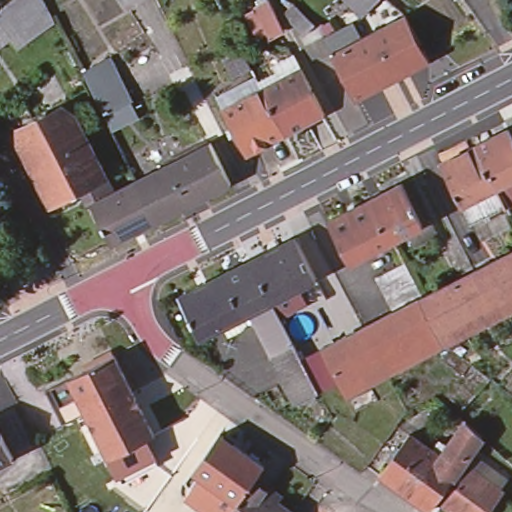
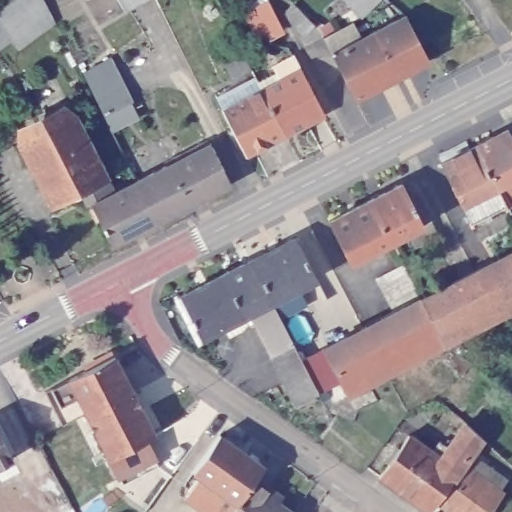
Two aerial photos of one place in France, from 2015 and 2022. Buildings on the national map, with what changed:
unchanged [(10,0),(45,0),(55,19),(17,45),(11,36),(0,44),(0,7),(10,0)]
unchanged [(127,5),(124,0),(137,0),(127,5)]
unchanged [(269,0),(270,0),(281,23),(258,36),(245,13),(269,0)]
unchanged [(365,13),(351,0),(375,0),(377,1),(365,13)]
unchanged [(293,22),(289,12),(290,11),(297,4),(319,24),(307,36),(300,28),(293,22)]
unchanged [(408,14),(432,60),(398,77),(375,31),(408,14)]
unchanged [(398,77),(357,98),(334,52),(325,36),(355,21),(364,36),(375,31),(398,77)]
unchanged [(241,50),(252,72),(235,82),(223,60),(241,50)]
unchanged [(79,73),(110,56),(132,101),(99,116),(79,73)]
unchanged [(224,113),(218,102),(257,81),(259,83),(264,93),(302,72),(325,118),(286,138),(247,158),(224,113)]
unchanged [(131,103),(139,117),(114,131),(105,117),(131,103)]
unchanged [(85,189),(52,205),(19,140),(74,112),(115,190),(92,202),(85,189)]
unchanged [(508,205),(506,205),(505,203),(471,220),(462,202),(442,161),(477,143),(510,127),(512,132),(512,210),(511,211),(508,205)]
unchanged [(232,182),(157,220),(137,179),(210,142),(232,182)]
unchanged [(115,190),(137,179),(157,220),(112,243),(92,202),(115,190)]
unchanged [(410,194),(417,190),(432,218),(424,222),(392,238),(372,197),(403,181),(410,194)]
unchanged [(372,197),(392,238),(350,259),(330,219),(372,197)]
unchanged [(295,236),(317,277),(272,300),(250,258),(295,236)]
unchanged [(512,293),(494,303),(475,267),(512,248),(512,293)]
unchanged [(295,343),(272,354),(250,311),(245,313),(224,272),(250,258),(272,300),(295,343)]
unchanged [(378,275),(405,262),(422,295),(395,309),(378,275)]
unchanged [(475,267),(494,303),(502,312),(481,323),(475,312),(440,330),(422,295),(475,267)]
unchanged [(180,294),(224,272),(245,313),(201,336),(180,294)]
unchanged [(380,316),(395,309),(422,295),(440,330),(445,342),(387,371),(364,325),(380,316)]
unchanged [(302,357),(324,346),(364,325),(387,371),(347,392),(340,379),(319,391),(297,402),(285,380),(272,354),(295,343),(302,357)]
unchanged [(120,355),(138,390),(94,413),(76,378),(120,355)]
unchanged [(492,377),(464,409),(450,396),(478,367),(492,377)]
unchanged [(94,413),(70,425),(52,390),(76,378),(94,413)]
unchanged [(138,390),(160,433),(150,438),(164,464),(129,483),(115,457),(117,456),(115,454),(95,414),(94,413),(138,390)]
unchanged [(459,469),(433,504),(427,512),(422,512),(408,502),(375,479),(405,437),(427,454),(435,444),(439,447),(450,433),(455,436),(462,427),(479,441),(459,469)]
unchanged [(14,457),(0,464),(0,430),(14,457)]
unchanged [(206,478),(196,470),(221,434),(237,445),(264,464),(265,465),(255,479),(272,491),(269,495),(293,512),(209,512),(190,499),(206,478)]
unchanged [(459,469),(490,491),(497,496),(485,512),(445,512),(433,504),(459,469)]
unchanged [(331,512),(314,512),(320,504),(331,512)]

